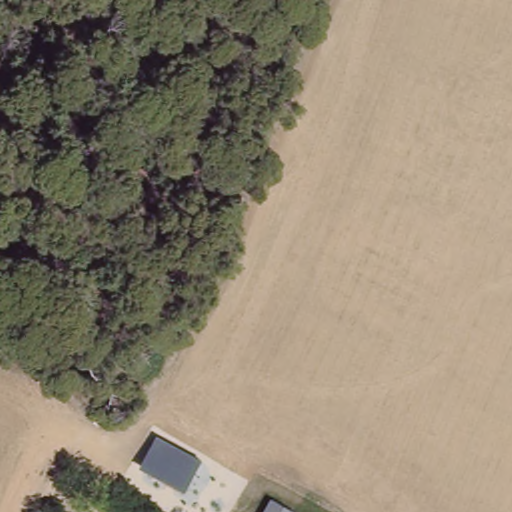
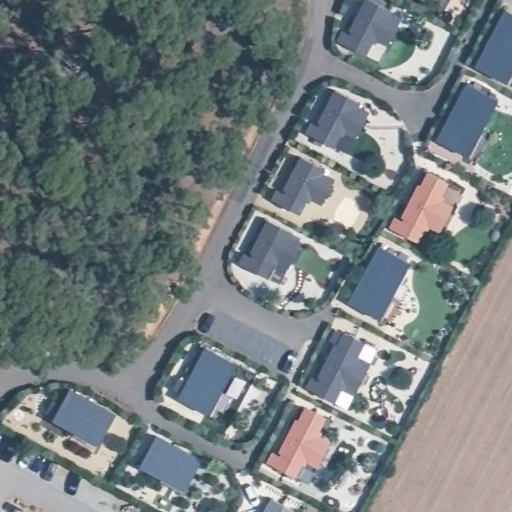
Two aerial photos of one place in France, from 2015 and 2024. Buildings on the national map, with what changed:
new [(348,33),(365,0),(371,0),(393,10),(391,15),(402,20),(387,46),(377,41),(375,45),(373,44),(367,55),(337,40),(342,30),(348,33)]
new [(512,14),(512,75),(508,83),(475,66),(505,10),(512,14)]
new [(498,99),(470,157),(437,141),(467,83),(498,99)]
new [(311,121),(317,124),(335,89),(362,103),(360,106),(370,112),(357,138),(346,133),(344,137),(341,135),(335,147),(306,133),(311,121)]
new [(277,189),(283,192),(302,156),(327,169),(325,174),(335,179),(323,204),(310,198),(301,215),(271,200),(277,189)]
new [(395,217),(401,219),(417,184),(422,185),(427,173),(449,183),(443,195),(445,197),(443,200),(454,205),(441,232),(427,225),(420,241),(389,227),(395,217)]
new [(294,234),(292,238),(302,243),(289,268),(279,263),(277,266),(274,264),(267,277),(240,264),(250,244),(255,246),(268,220),(294,234)]
new [(378,245),(412,263),(382,319),(348,303),(378,245)]
new [(337,346),(344,330),(365,341),(358,356),(361,357),(359,361),(370,365),(357,392),(347,387),(338,403),(305,387),(310,376),(317,379),(334,344),(337,346)]
new [(237,364),(210,416),(177,399),(205,348),(237,364)]
unchanged [(82,384),(128,409),(113,437),(67,412),(82,384)]
unchanged [(287,448),(297,453),(298,450),(295,449),(313,414),(317,415),(323,402),(343,412),(336,425),(340,427),(337,433),(348,439),(335,464),(323,458),(321,462),(317,460),(310,474),(281,459),(287,448)]
unchanged [(184,494),(137,467),(155,434),(202,459),(184,494)]
unchanged [(271,498),(297,512),(263,512),(271,498)]

